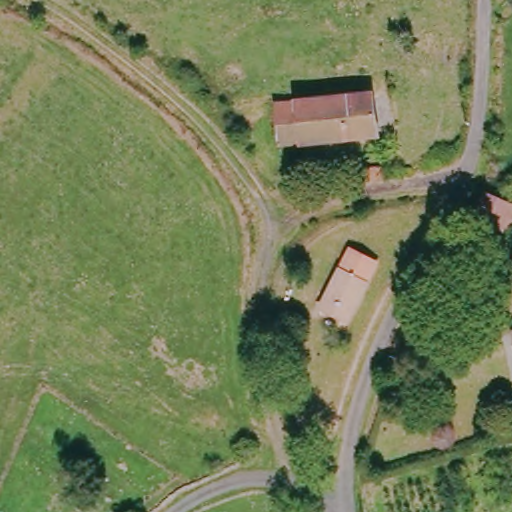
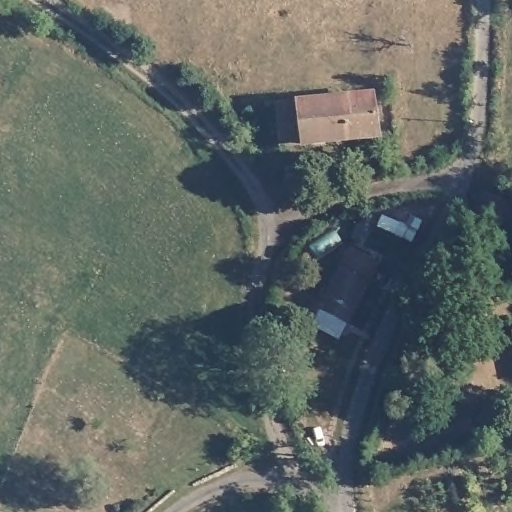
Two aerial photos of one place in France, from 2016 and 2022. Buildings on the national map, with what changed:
unchanged [(290,101),(366,96),(369,137),(292,142),(271,150),(268,104),(290,101)]
unchanged [(349,166),(373,163),(375,181),(350,184),(349,166)]
unchanged [(512,206),(512,225),(497,238),(470,226),(484,195),(512,206)]
unchanged [(371,264),(340,322),(316,310),(346,252),(371,264)]
unchanged [(512,333),(512,345),(510,333),(512,333)]

